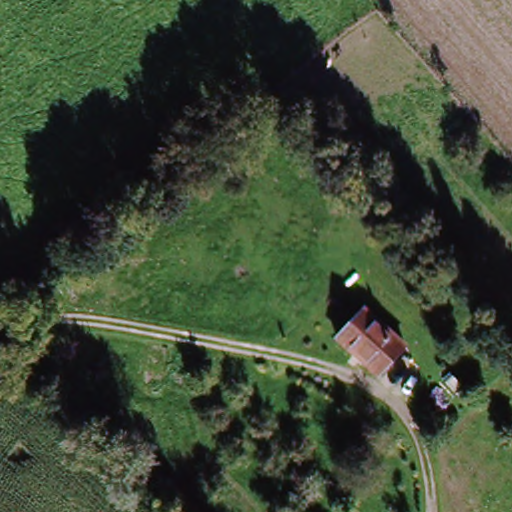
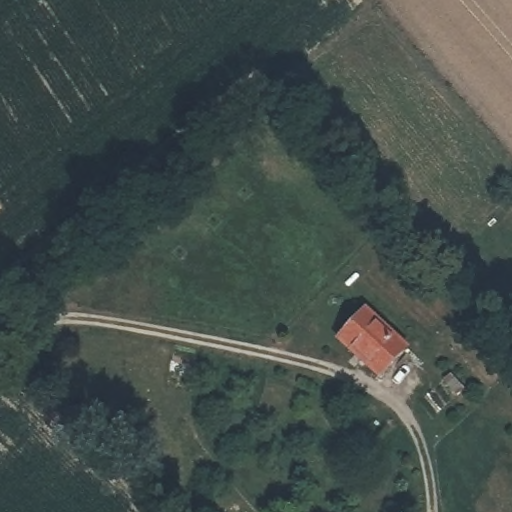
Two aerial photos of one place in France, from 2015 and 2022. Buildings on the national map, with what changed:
unchanged [(400,352),(370,377),(332,336),(363,311),(400,352)]

